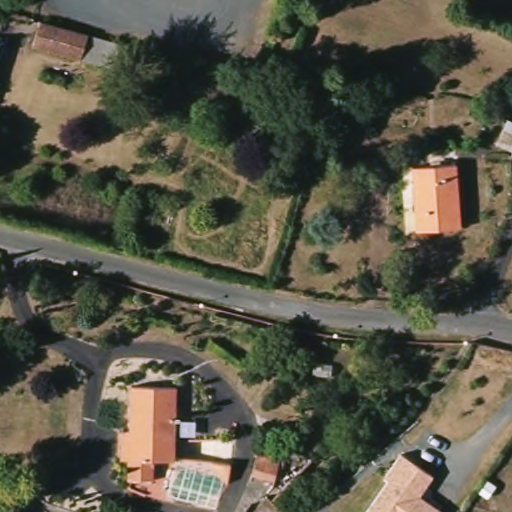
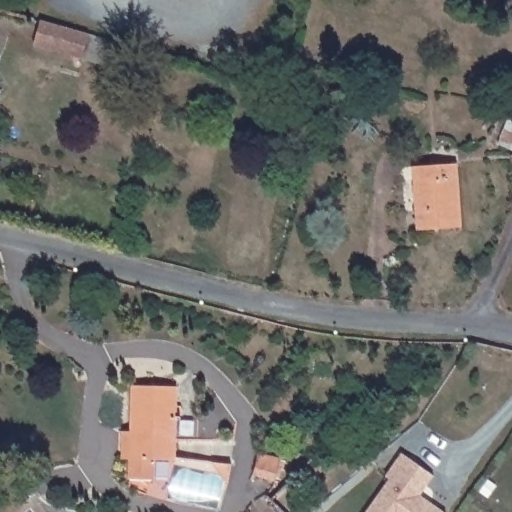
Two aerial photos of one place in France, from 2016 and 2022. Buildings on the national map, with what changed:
unchanged [(113,71),(49,50),(33,45),(40,22),(120,45),(113,71)]
unchanged [(458,229),(415,230),(413,167),(441,166),(454,166),(454,170),(458,229)]
unchanged [(175,456),(128,456),(129,388),(177,388),(175,456)]
unchanged [(267,482),(244,475),(251,452),(274,460),(267,482)]
unchanged [(384,476),(401,452),(434,475),(421,495),(445,512),(364,512),(387,478),(384,476)]

